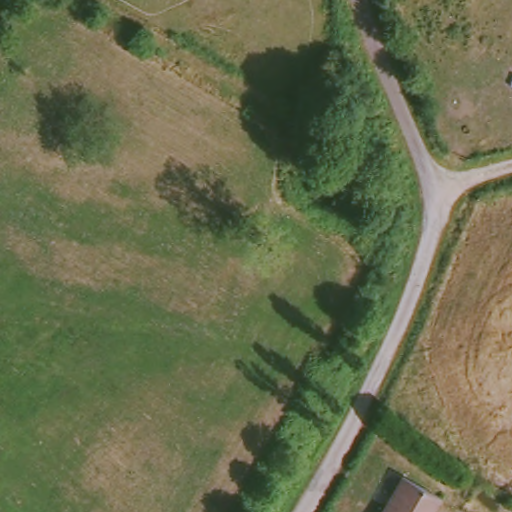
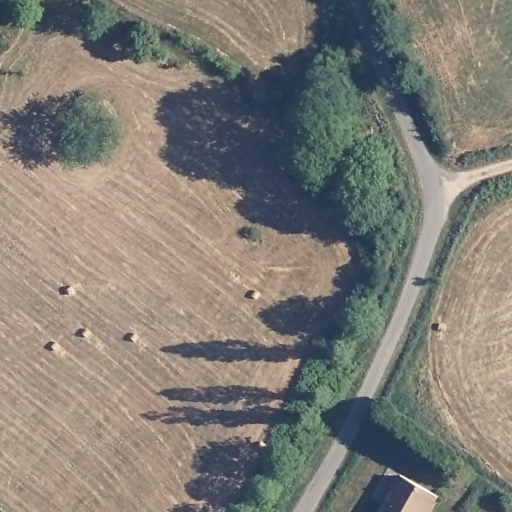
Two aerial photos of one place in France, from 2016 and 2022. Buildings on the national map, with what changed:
unchanged [(436,497),(427,512),(377,512),(400,475),(436,497)]

